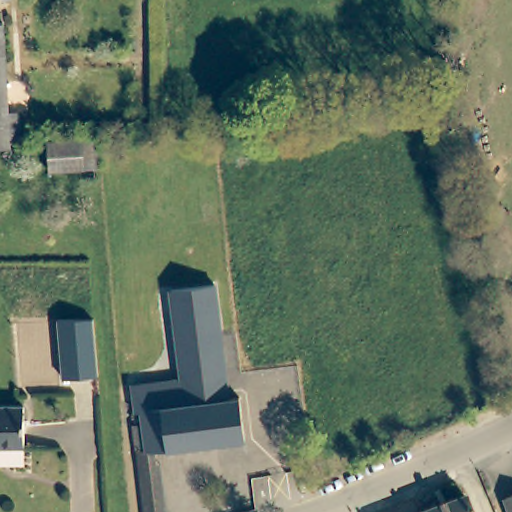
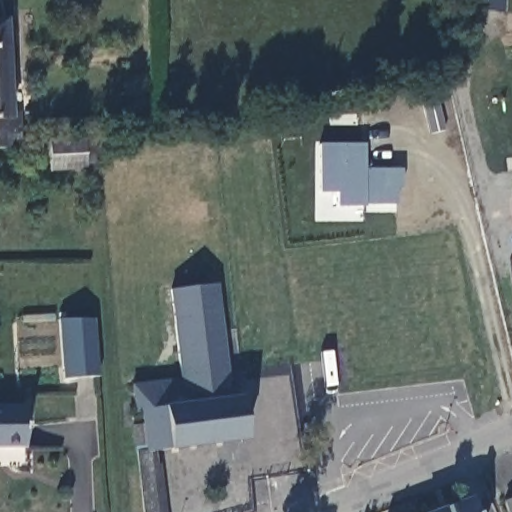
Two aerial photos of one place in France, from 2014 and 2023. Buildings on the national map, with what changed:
unchanged [(3,16),(7,107),(17,107),(19,138),(9,138),(10,144),(0,144),(0,16),(3,16)]
unchanged [(81,140),(97,139),(98,169),(82,170),(48,172),(47,172),(46,142),(81,140)]
new [(318,142),(364,144),(364,168),(401,168),(401,186),(396,186),(396,203),(364,203),(364,206),(335,206),(335,193),(317,193),(318,142)]
unchanged [(184,404),(183,392),(181,381),(169,289),(217,283),(232,399),(184,404)]
unchanged [(58,319),(91,319),(97,375),(62,378),(58,319)]
unchanged [(138,453),(138,452),(136,452),(133,426),(142,425),(141,413),(135,413),(132,387),(181,381),(183,392),(184,404),(240,398),(245,440),(155,451),(138,453)]
unchanged [(0,450),(0,410),(24,409),(25,449),(0,450)]
unchanged [(162,465),(167,512),(145,512),(138,453),(155,451),(156,465),(162,465)]
unchanged [(424,512),(467,496),(473,512),(424,512)]
unchanged [(512,500),(512,512),(506,512),(502,503),(512,500)]

